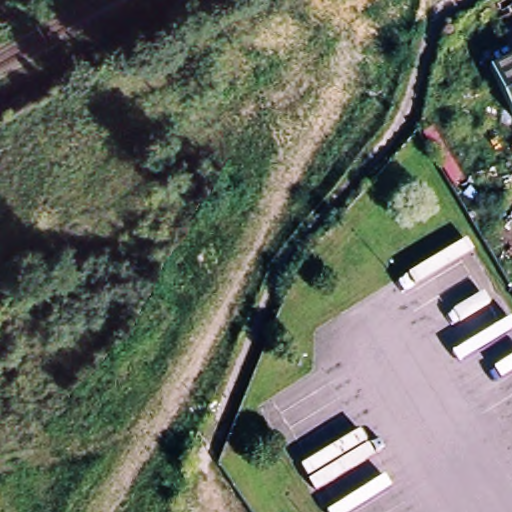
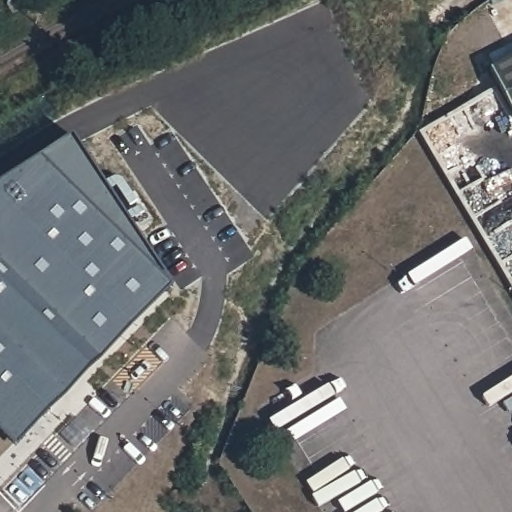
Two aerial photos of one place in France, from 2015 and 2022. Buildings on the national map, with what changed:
unchanged [(512,62),(512,118),(508,120),(486,75),(512,62)]
new [(181,290),(96,375),(59,406),(7,442),(0,435),(0,194),(78,136),(181,290)]

